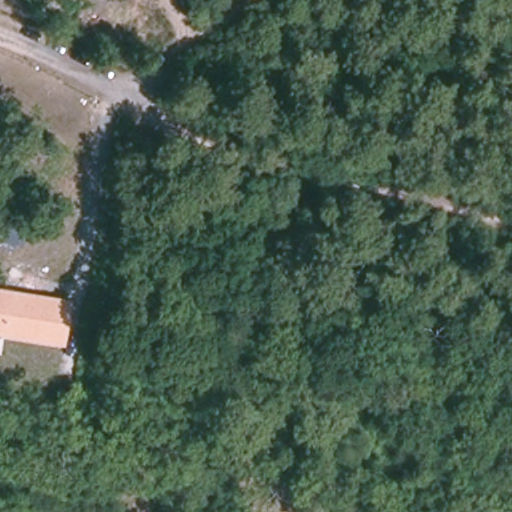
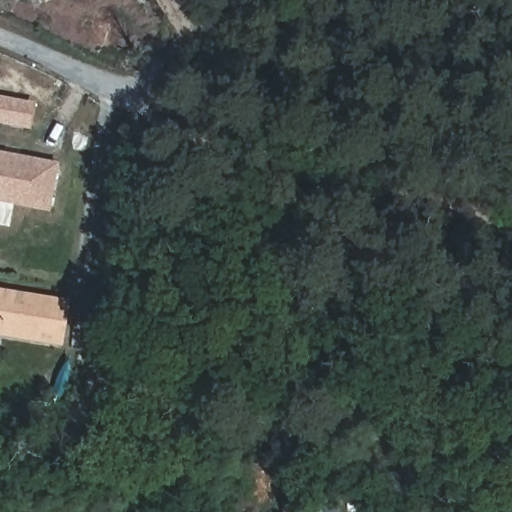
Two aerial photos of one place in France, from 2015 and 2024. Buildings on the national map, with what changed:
new [(36,105),(33,126),(0,121),(0,99),(36,105)]
new [(57,164),(50,207),(0,199),(0,154),(57,164)]
unchanged [(63,346),(0,336),(0,290),(69,302),(63,346)]

